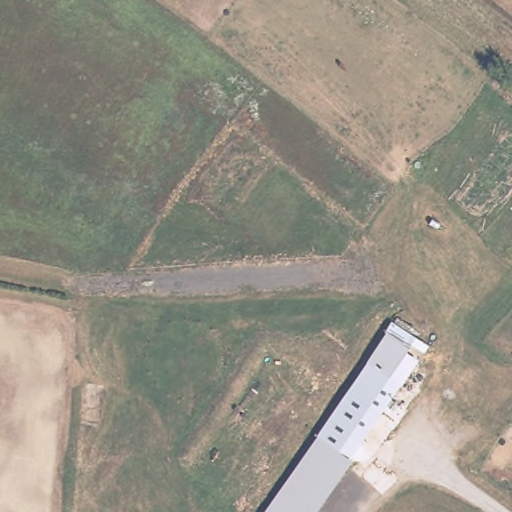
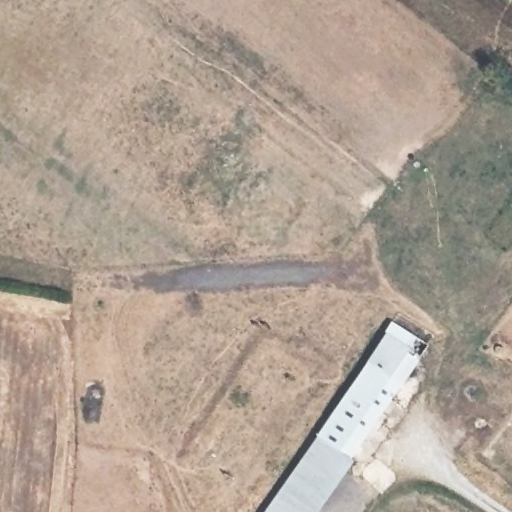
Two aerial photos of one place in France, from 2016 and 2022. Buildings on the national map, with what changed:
unchanged [(398,314),(433,339),(315,512),(265,512),(398,314)]

